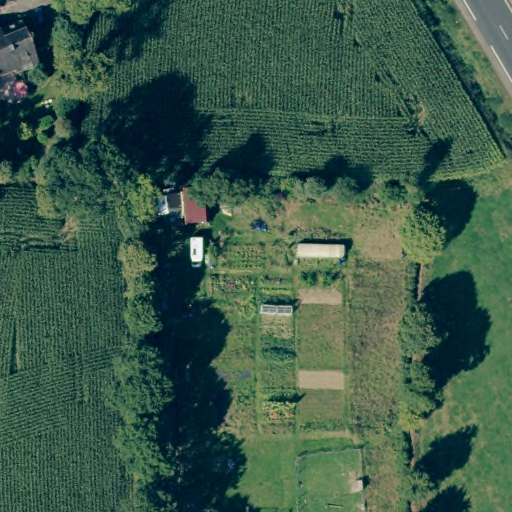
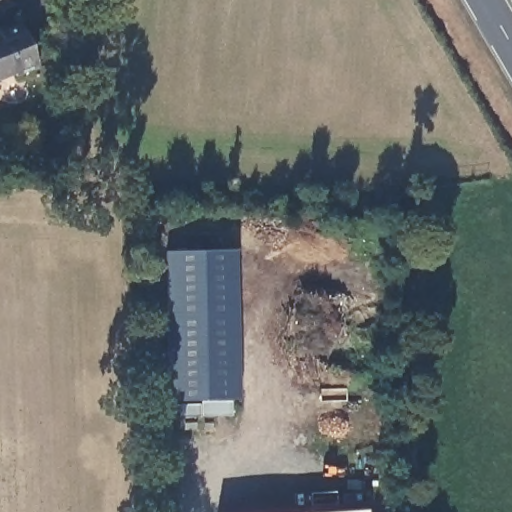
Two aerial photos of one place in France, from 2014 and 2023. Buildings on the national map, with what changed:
unchanged [(19,74),(17,70),(0,77),(0,34),(22,25),(38,66),(19,74)]
new [(238,398),(168,401),(164,251),(233,250),(238,398)]
new [(367,512),(326,512),(366,509),(367,512)]

